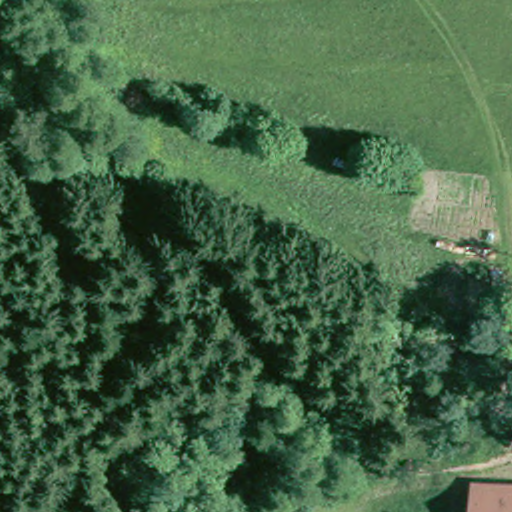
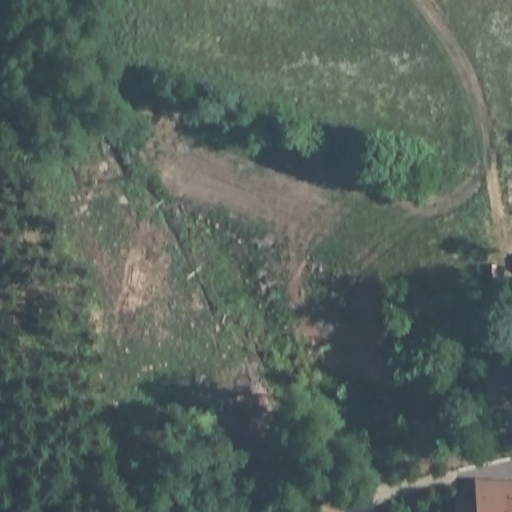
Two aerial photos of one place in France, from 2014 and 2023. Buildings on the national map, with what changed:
unchanged [(512,512),(470,512),(473,477),(512,479),(512,512)]

